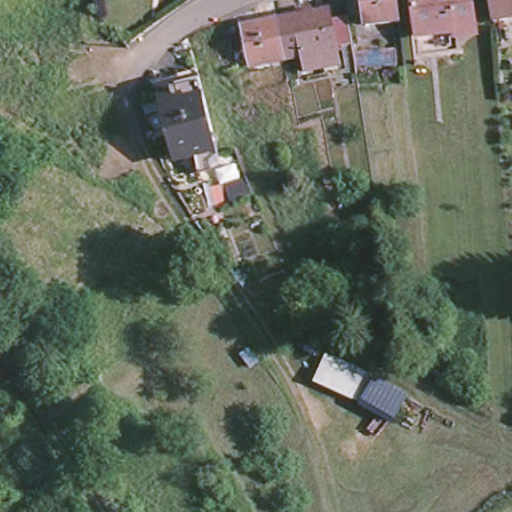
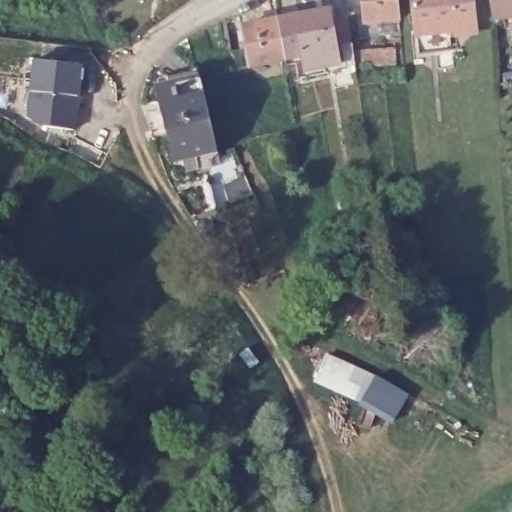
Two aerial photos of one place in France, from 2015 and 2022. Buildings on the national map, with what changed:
unchanged [(364,25),(361,3),(346,4),(346,0),(397,0),(399,21),(364,25)]
unchanged [(474,28),(455,31),(451,31),(450,27),(426,30),(414,31),(410,0),(469,0),(474,28)]
unchanged [(491,0),(512,0),(512,19),(494,21),(491,0)]
unchanged [(398,62),(356,68),(356,70),(345,71),(341,47),(335,48),(338,65),(302,71),(300,57),(286,59),(279,21),(301,17),(329,12),(330,19),(331,21),(349,18),(353,46),(354,54),(396,48),(398,62)]
unchanged [(286,59),(249,66),(243,27),(279,21),(286,59)]
new [(28,123),(31,93),(36,59),(83,66),(78,103),(74,131),(28,123)]
unchanged [(212,151),(168,159),(151,74),(196,65),(212,151)]
unchanged [(253,194),(230,203),(223,186),(246,177),(253,194)]
unchanged [(324,353),(409,394),(394,422),(311,383),(324,353)]

